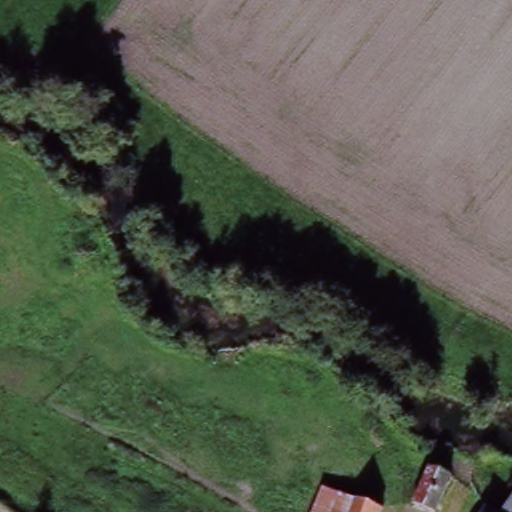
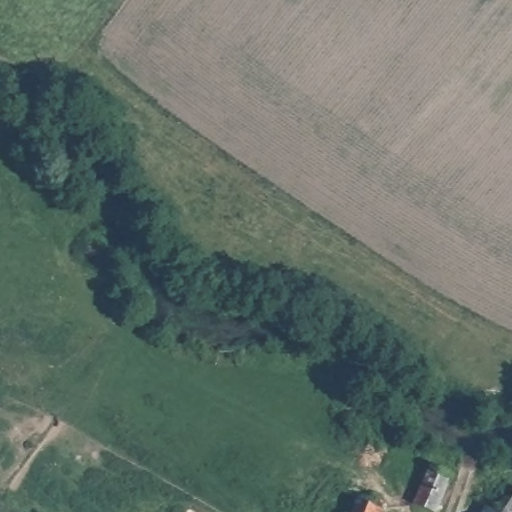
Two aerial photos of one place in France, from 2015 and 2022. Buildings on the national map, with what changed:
unchanged [(416,498),(432,468),(451,475),(436,507),(416,498)]
unchanged [(503,512),(512,500),(512,512),(503,512)]
unchanged [(380,511),(380,512),(350,512),(355,501),(380,511)]
unchanged [(495,512),(480,512),(486,504),(495,512)]

